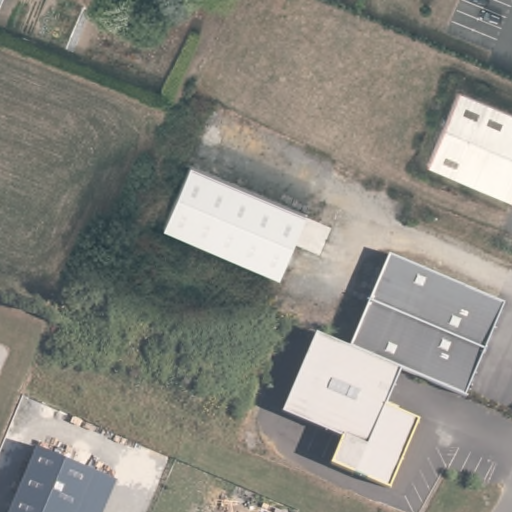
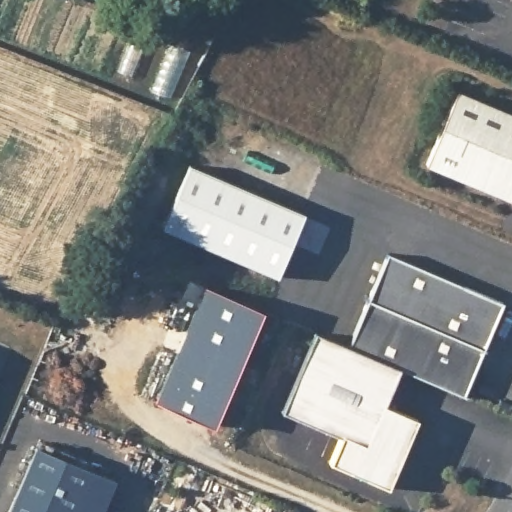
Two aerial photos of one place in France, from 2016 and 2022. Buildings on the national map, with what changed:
unchanged [(512,200),(429,164),(460,91),(512,113),(512,200)]
unchanged [(277,277),(160,229),(186,164),(305,213),(277,277)]
unchanged [(388,254),(504,304),(464,393),(400,367),(348,345),(388,254)]
new [(206,286),(263,310),(213,427),(156,402),(206,286)]
unchanged [(348,345),(394,364),(400,367),(385,403),(419,417),(400,461),(390,485),(331,460),(340,437),(342,434),(283,409),(315,331),(348,345)]
unchanged [(38,445),(115,479),(102,512),(10,512),(38,445)]

